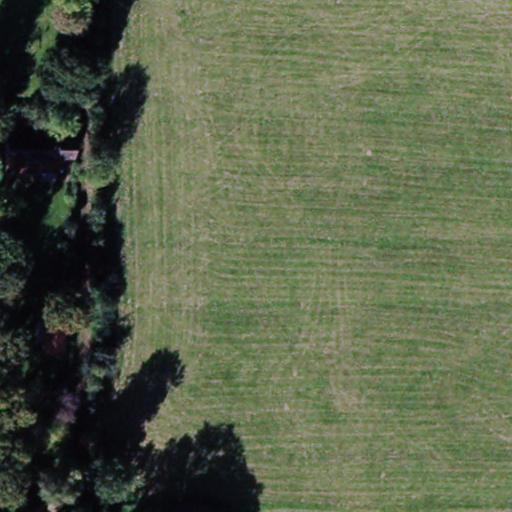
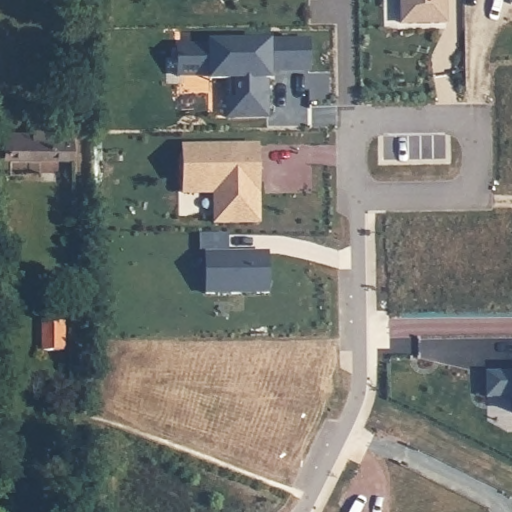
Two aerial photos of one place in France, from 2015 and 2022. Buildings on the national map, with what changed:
new [(395,26),(395,0),(451,0),(451,24),(395,26)]
new [(504,0),(512,0),(512,7),(505,7),(504,0)]
new [(229,119),(228,72),(212,73),(212,76),(179,76),(179,48),(210,48),(210,45),(248,44),(248,47),(270,47),(270,42),(310,41),(310,72),(261,73),(261,80),(267,80),(268,118),(229,119)]
unchanged [(60,162),(3,159),(3,137),(24,138),(26,127),(45,128),(45,139),(62,140),(60,162)]
new [(258,148),(259,169),(259,182),(260,223),(217,224),(216,194),(185,194),(185,149),(258,148)]
new [(268,253),(269,294),(205,294),(205,253),(268,253)]
unchanged [(62,350),(43,349),(44,323),(65,324),(62,350)]
new [(488,375),(512,375),(512,399),(488,399),(488,375)]

